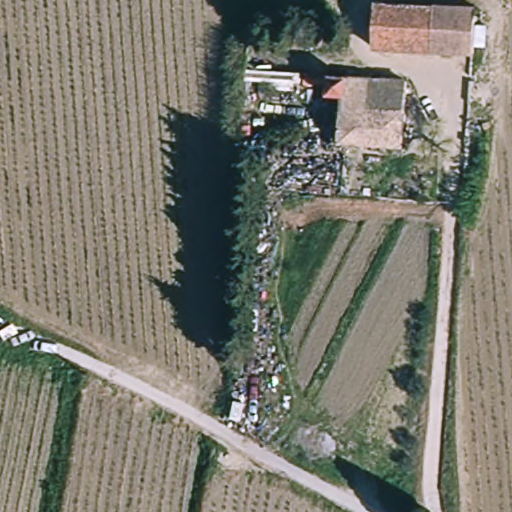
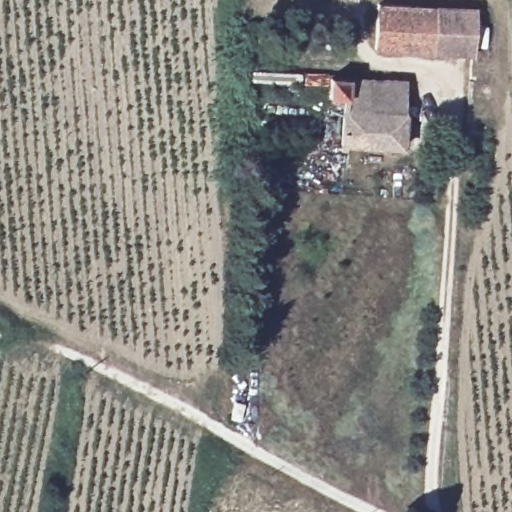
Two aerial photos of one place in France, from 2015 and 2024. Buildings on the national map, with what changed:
unchanged [(373,47),(375,1),(472,6),(467,49),(373,47)]
unchanged [(315,25),(314,40),(242,35),(244,21),(315,25)]
unchanged [(337,100),(327,99),(327,76),(402,80),(402,142),(337,141),(337,100)]

